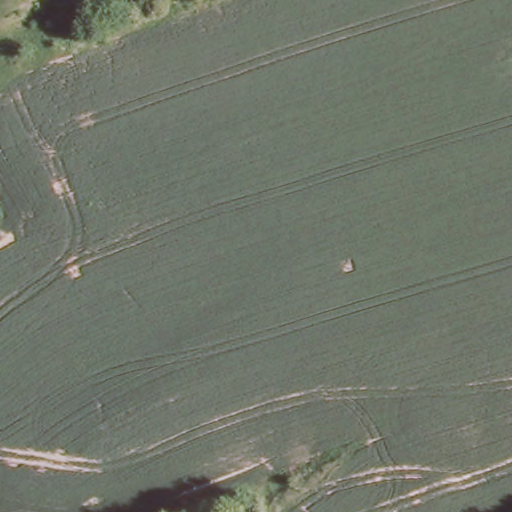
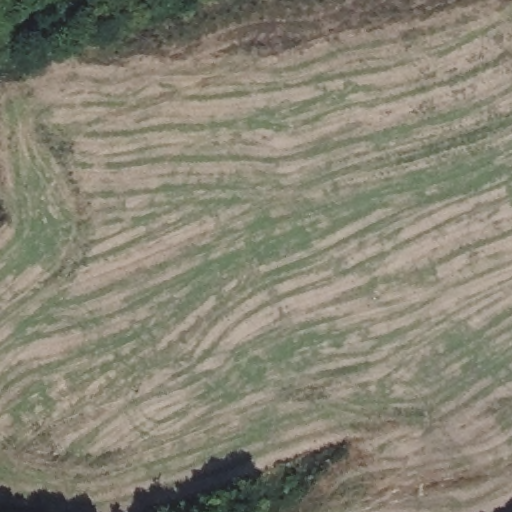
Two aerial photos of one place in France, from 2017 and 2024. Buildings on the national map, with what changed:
unchanged [(87,29),(79,0),(107,0),(114,20),(87,29)]

